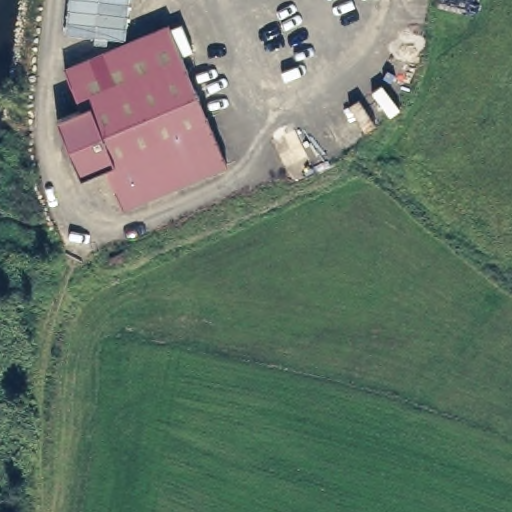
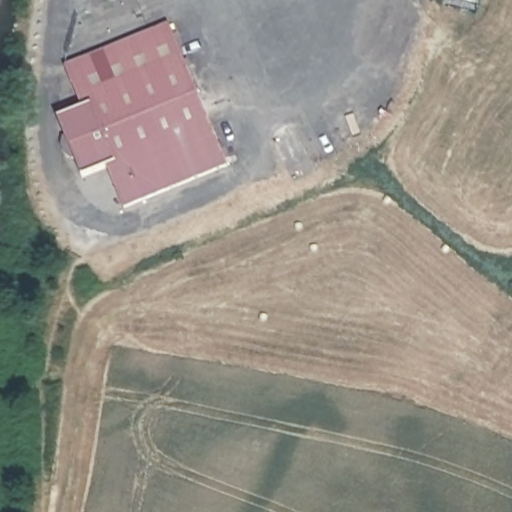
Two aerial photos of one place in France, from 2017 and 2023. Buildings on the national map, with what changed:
unchanged [(66,69),(169,26),(173,36),(70,79),(66,69)]
unchanged [(173,36),(228,167),(125,209),(108,168),(83,179),(75,159),(74,160),(68,156),(64,147),(65,140),(67,140),(59,120),(83,110),(70,79),(173,36)]

